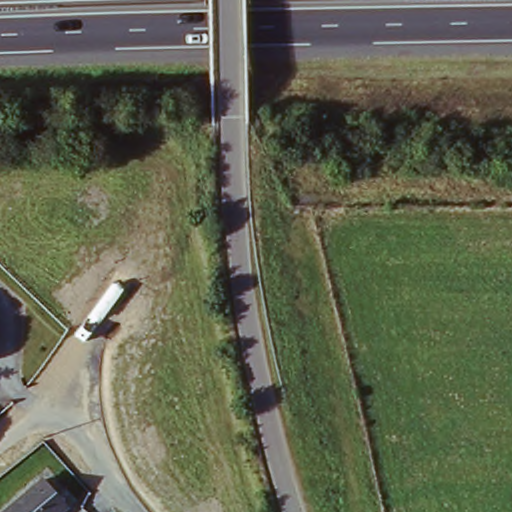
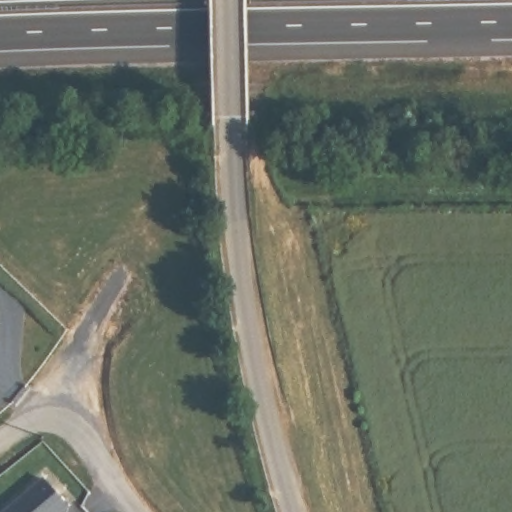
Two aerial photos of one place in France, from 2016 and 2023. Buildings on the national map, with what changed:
unchanged [(45,479),(67,508),(63,512),(6,512),(45,479)]

